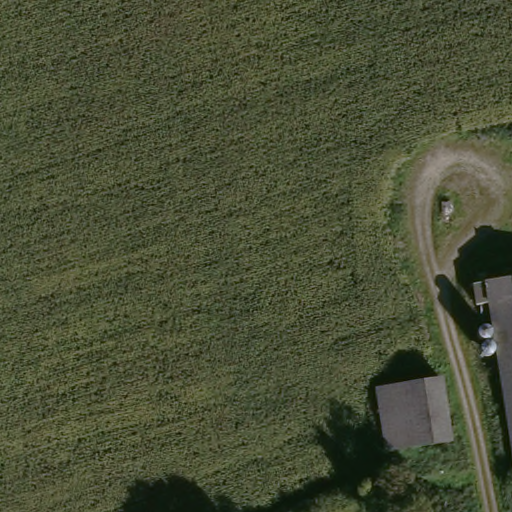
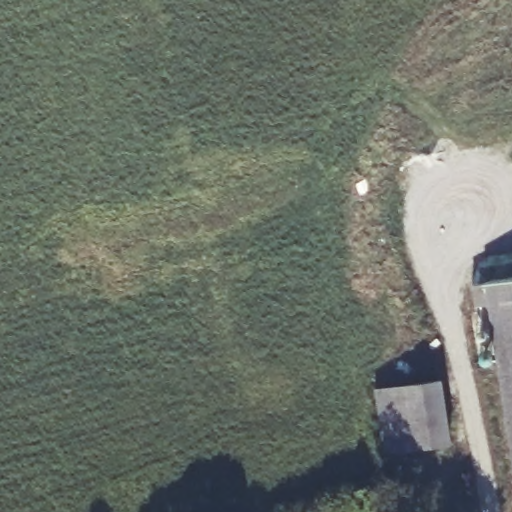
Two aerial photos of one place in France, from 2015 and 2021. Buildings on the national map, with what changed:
unchanged [(496,301),(480,302),(478,279),(512,275),(512,406),(496,301)]
unchanged [(441,380),(451,442),(386,453),(377,390),(441,380)]

